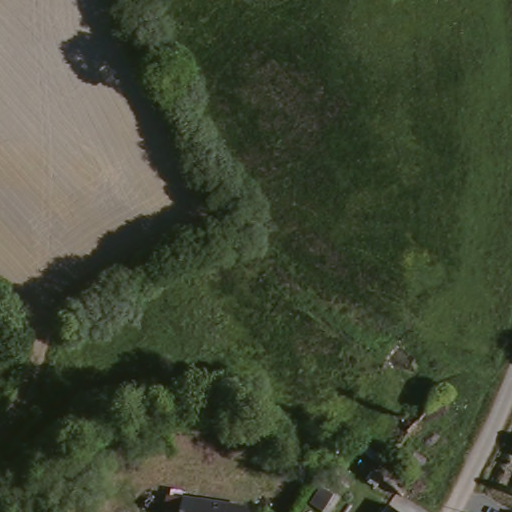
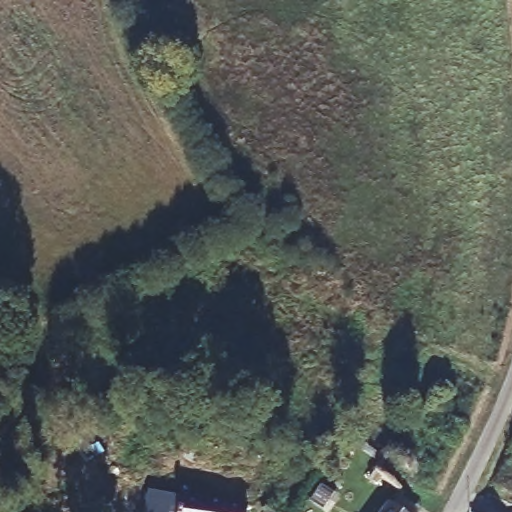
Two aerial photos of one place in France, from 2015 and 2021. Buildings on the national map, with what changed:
unchanged [(245,504),(244,512),(163,512),(166,491),(245,504)]
unchanged [(384,511),(385,512),(383,512),(384,511)]

